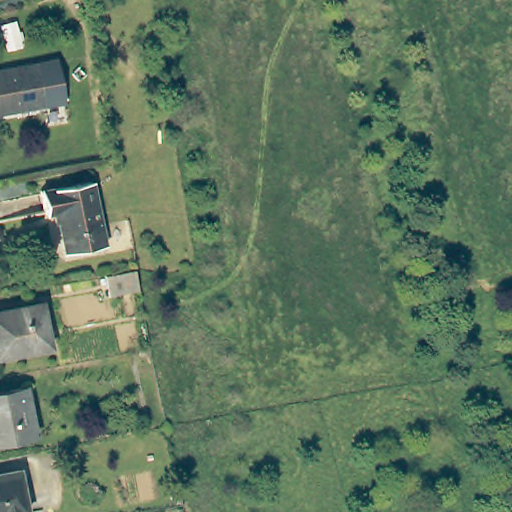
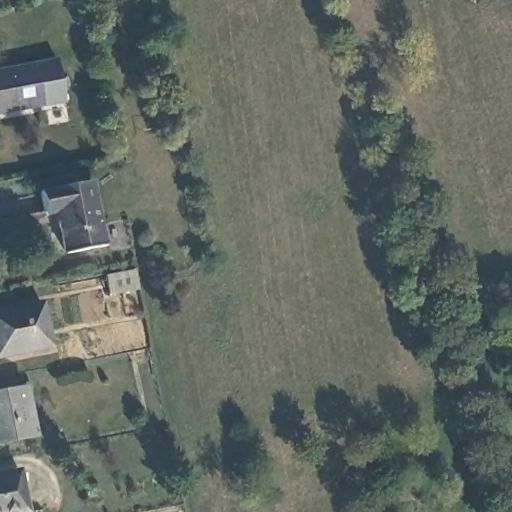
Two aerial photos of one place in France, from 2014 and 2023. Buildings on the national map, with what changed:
unchanged [(56,105),(0,115),(0,71),(48,62),(56,105)]
unchanged [(94,182),(105,246),(66,253),(59,211),(47,214),(44,191),(94,182)]
unchanged [(135,286),(106,292),(102,275),(132,269),(135,286)]
unchanged [(50,345),(0,354),(0,311),(42,302),(50,345)]
unchanged [(0,390),(29,385),(37,433),(0,440),(0,390)]
unchanged [(26,506),(14,508),(14,512),(0,512),(0,467),(17,463),(26,506)]

